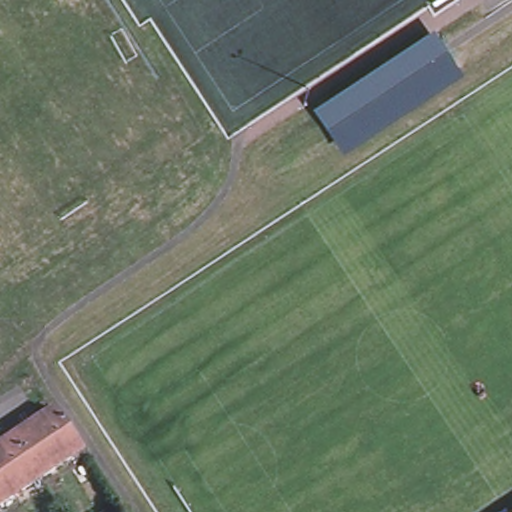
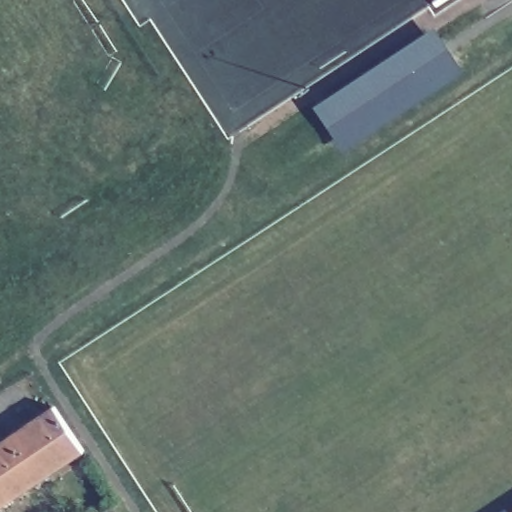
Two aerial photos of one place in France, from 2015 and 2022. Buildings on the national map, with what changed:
unchanged [(467,72),(345,151),(319,106),(435,29),(467,72)]
unchanged [(10,437),(55,406),(85,450),(40,481),(10,437)]
unchanged [(40,481),(0,509),(0,445),(10,437),(40,481)]

